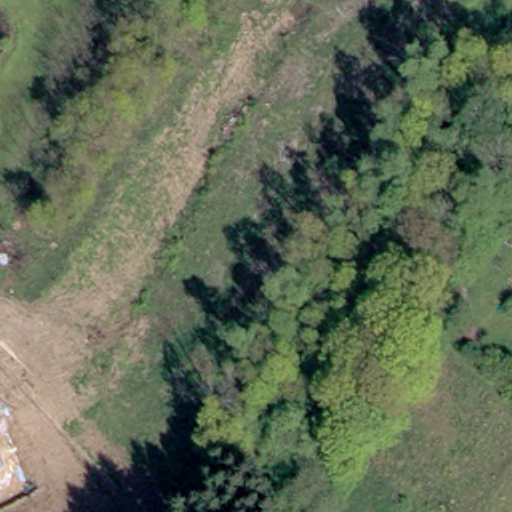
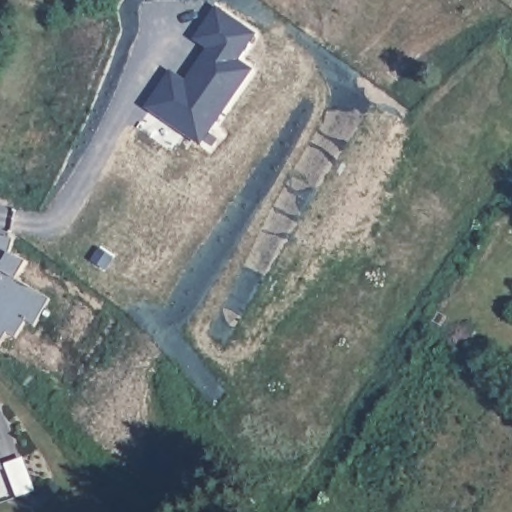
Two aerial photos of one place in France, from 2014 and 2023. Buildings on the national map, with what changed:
new [(183,130),(170,148),(139,127),(151,109),(148,107),(172,72),(187,82),(210,49),(196,39),(216,9),(213,7),(217,2),(262,33),(244,59),(258,68),(216,129),(226,136),(212,156),(198,146),(200,141),(183,130)]
new [(18,239),(14,254),(31,261),(21,279),(54,298),(38,325),(30,320),(20,337),(12,332),(3,347),(0,346),(0,235),(18,239)]
unchanged [(2,468),(0,469),(0,463),(2,468)]

